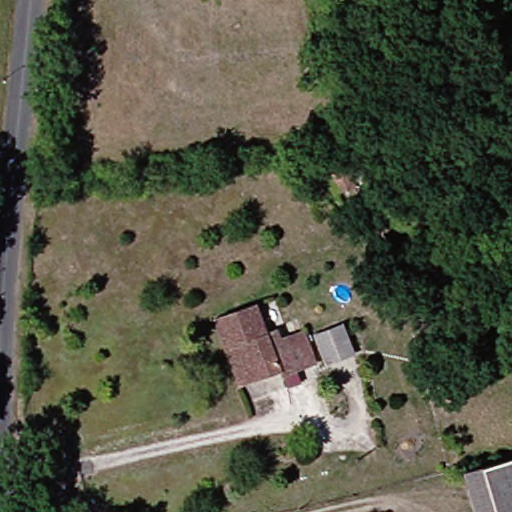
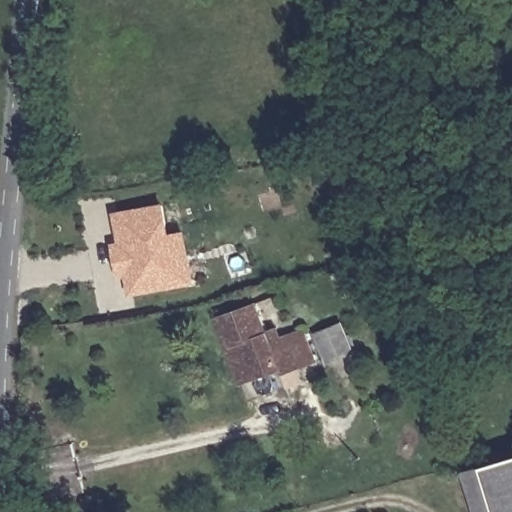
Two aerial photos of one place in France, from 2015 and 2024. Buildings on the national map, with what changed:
unchanged [(339,189),(331,164),(348,159),(361,156),(366,176),(353,179),(355,184),(339,189)]
new [(114,213),(166,203),(171,232),(187,230),(196,283),(130,295),(127,278),(119,279),(113,243),(119,242),(114,213)]
unchanged [(219,318),(226,316),(261,303),(273,332),(274,331),(283,328),(287,337),(299,333),(309,329),(321,360),(310,364),(289,373),(286,368),(255,379),(244,384),(219,318)]
unchanged [(348,323),(359,351),(332,361),(321,333),(348,323)]
unchanged [(489,465),(512,459),(512,512),(503,512),(489,465)]
unchanged [(503,512),(481,512),(469,471),(489,465),(503,512)]

